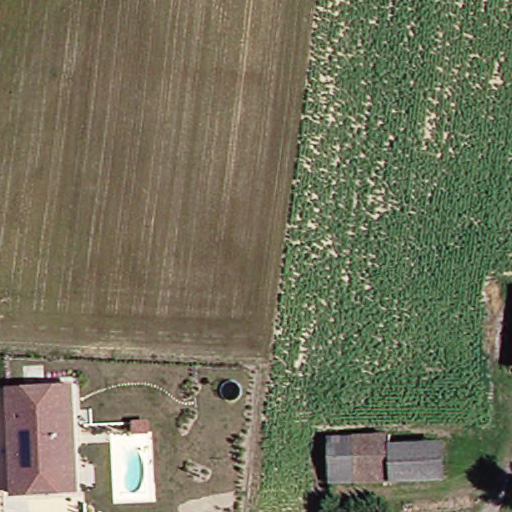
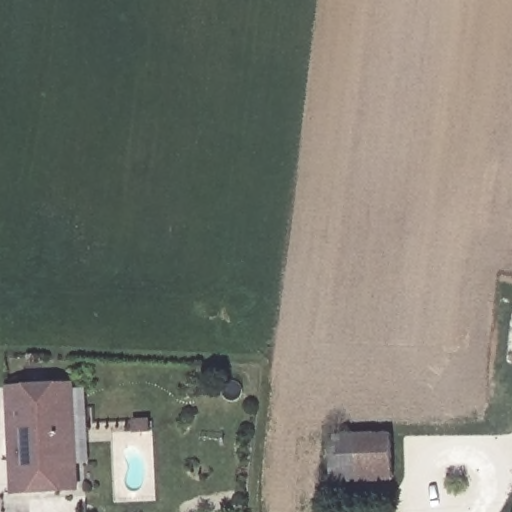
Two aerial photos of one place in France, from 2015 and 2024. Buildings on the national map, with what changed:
unchanged [(74,489),(10,491),(7,388),(70,386),(74,489)]
unchanged [(392,474),(327,481),(325,435),(387,431),(388,441),(392,474)]
unchanged [(438,437),(441,471),(392,474),(388,441),(438,437)]

